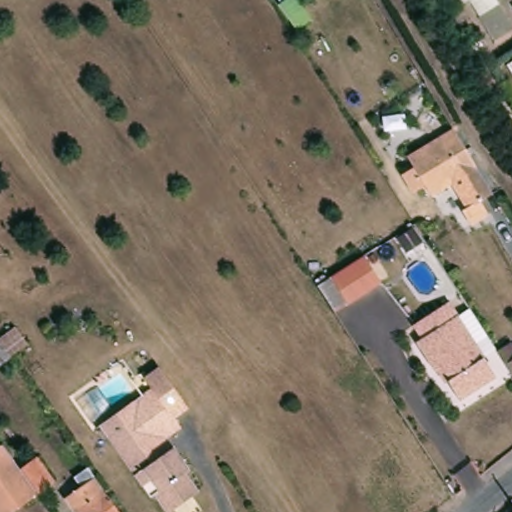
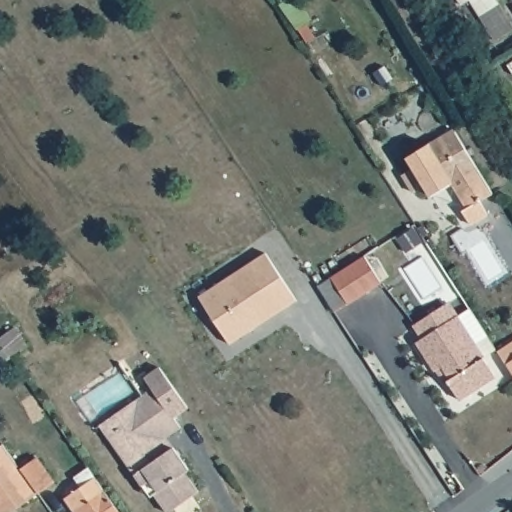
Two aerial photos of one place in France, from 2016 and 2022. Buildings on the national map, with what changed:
unchanged [(459,4),(457,0),(466,0),(459,4)]
unchanged [(512,24),(512,29),(494,39),(469,0),(497,0),(512,24)]
unchanged [(480,167),(434,197),(426,187),(416,195),(402,177),(412,167),(408,155),(456,128),(480,167)]
unchanged [(457,207),(463,203),(452,185),(480,167),(493,188),(477,198),(487,214),(470,224),(457,207)]
unchanged [(415,230),(424,244),(408,255),(399,241),(415,230)]
new [(209,286),(217,298),(247,277),(239,265),(257,253),(288,300),(219,347),(187,300),(209,286)]
unchanged [(357,262),(372,283),(343,305),(328,282),(357,262)]
unchanged [(491,335),(477,344),(497,376),(461,400),(448,381),(453,378),(444,366),(436,370),(416,340),(423,334),(418,324),(450,303),(458,318),(473,307),(491,335)]
new [(502,356),(512,350),(512,371),(510,369),(502,356)]
unchanged [(201,488),(170,512),(167,512),(155,493),(150,497),(100,425),(156,386),(148,376),(161,366),(190,406),(176,416),(185,427),(170,440),(201,488)]
unchanged [(10,459),(19,470),(33,461),(51,483),(35,493),(10,512),(0,512),(0,446),(10,459)]
unchanged [(74,491),(65,477),(77,468),(110,512),(74,512),(64,499),(74,491)]

